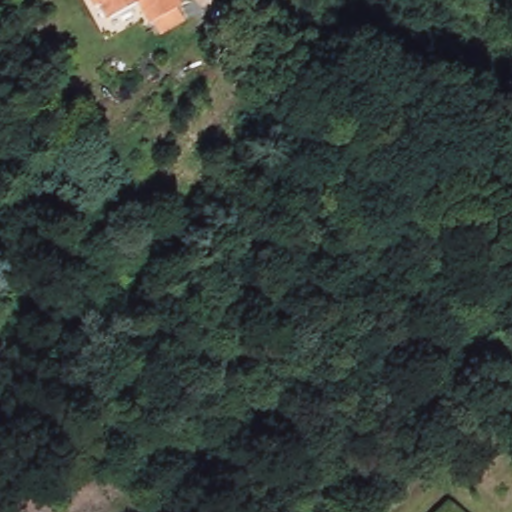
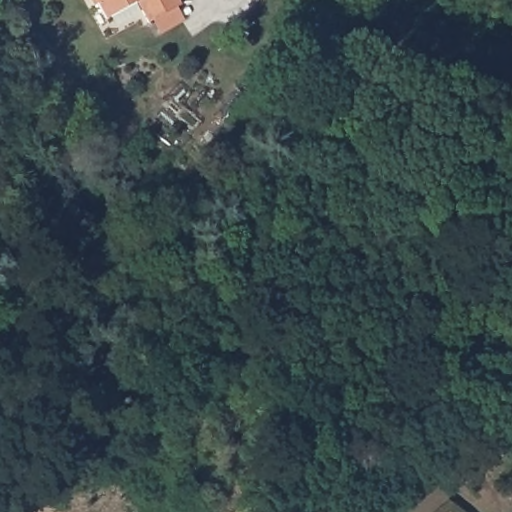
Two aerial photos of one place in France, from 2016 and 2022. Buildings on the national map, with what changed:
unchanged [(176,7),(144,24),(133,3),(102,19),(95,4),(90,6),(86,0),(172,0),(176,7)]

